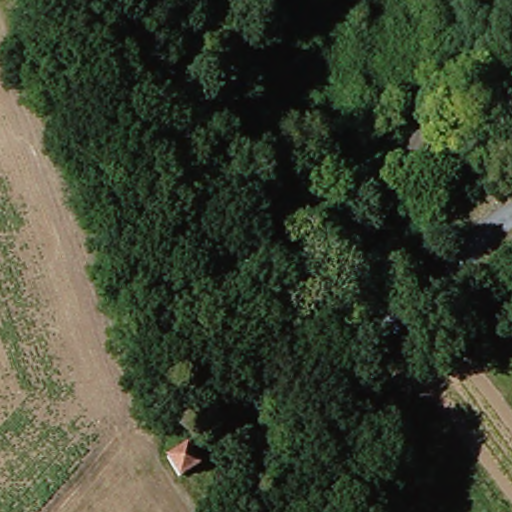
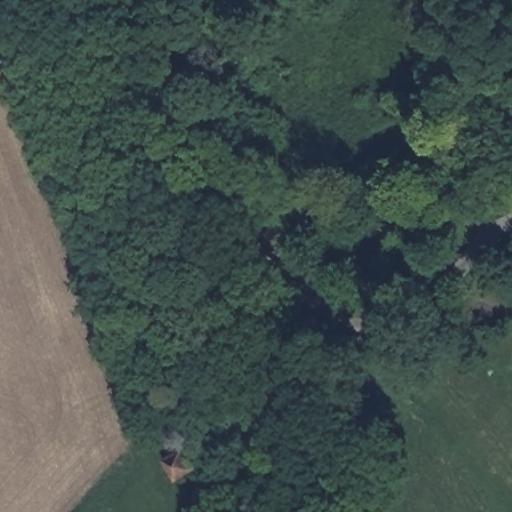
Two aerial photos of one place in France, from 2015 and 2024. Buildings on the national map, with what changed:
unchanged [(201,438),(216,460),(192,478),(177,456),(201,438)]

